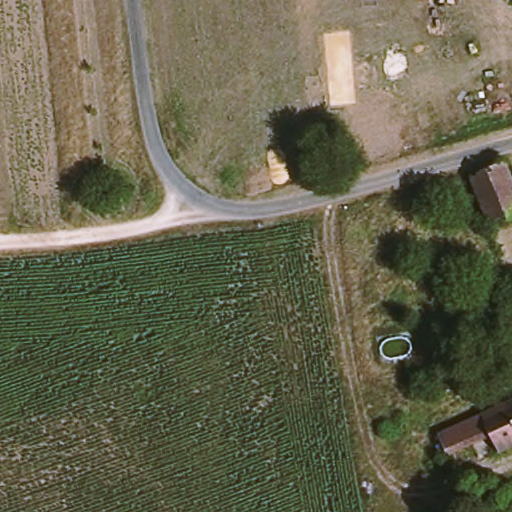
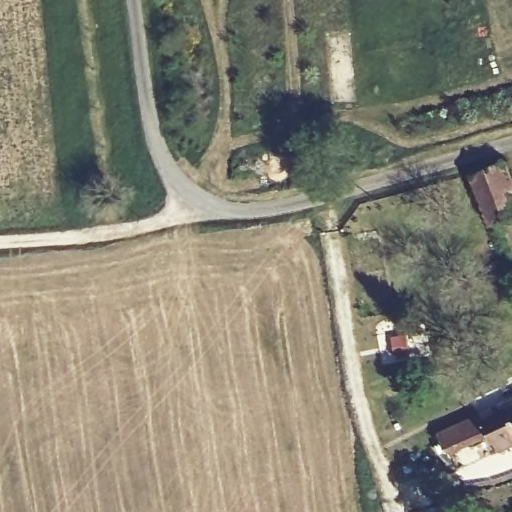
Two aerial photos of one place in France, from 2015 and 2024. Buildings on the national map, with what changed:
unchanged [(467,176),(499,160),(512,189),(512,214),(489,225),(467,176)]
unchanged [(512,299),(512,303),(511,300),(512,299)]
unchanged [(491,431),(446,450),(437,430),(512,399),(512,444),(499,449),(491,431)]

